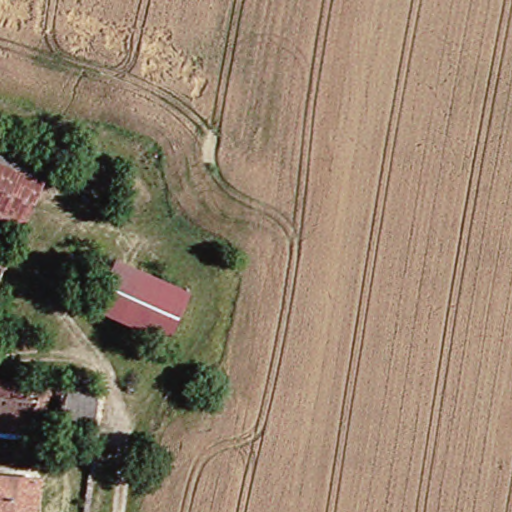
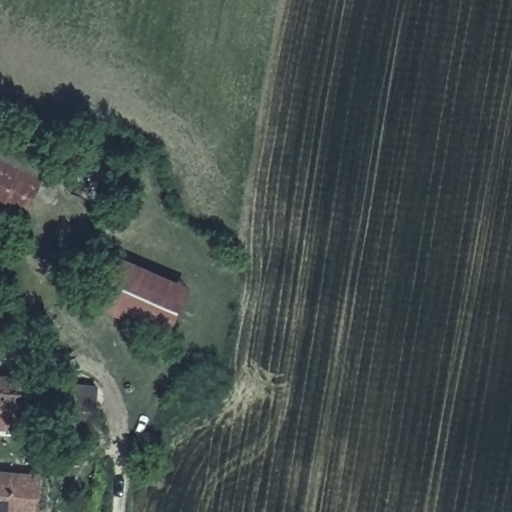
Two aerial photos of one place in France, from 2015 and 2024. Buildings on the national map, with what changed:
unchanged [(60,149),(49,173),(0,155),(0,124),(60,149)]
unchanged [(26,232),(0,221),(0,155),(49,173),(26,232)]
unchanged [(26,238),(0,301),(0,227),(26,238)]
unchanged [(196,289),(177,335),(107,308),(127,259),(196,289)]
unchanged [(64,438),(0,431),(0,382),(101,392),(98,421),(97,440),(64,438)]
unchanged [(13,512),(0,512),(0,472),(17,474),(13,512)]

